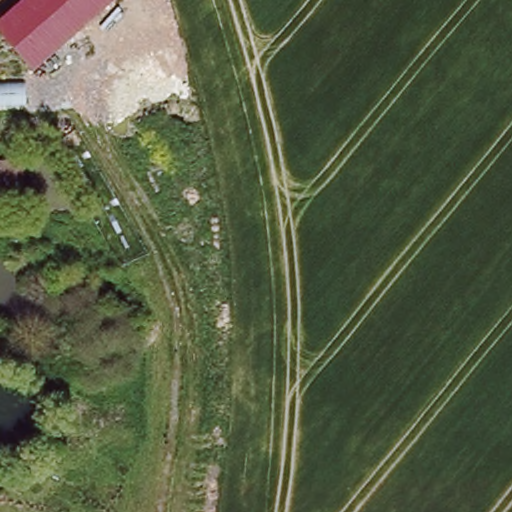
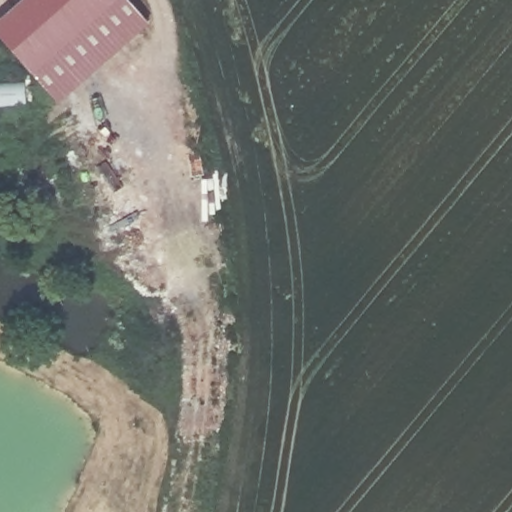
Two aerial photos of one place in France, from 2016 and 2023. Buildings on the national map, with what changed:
unchanged [(74,39),(35,73),(0,33),(0,24),(27,0),(68,0),(74,39)]
new [(154,21),(81,85),(74,39),(68,0),(135,0),(154,21)]
new [(81,85),(61,102),(35,73),(74,39),(81,85)]

